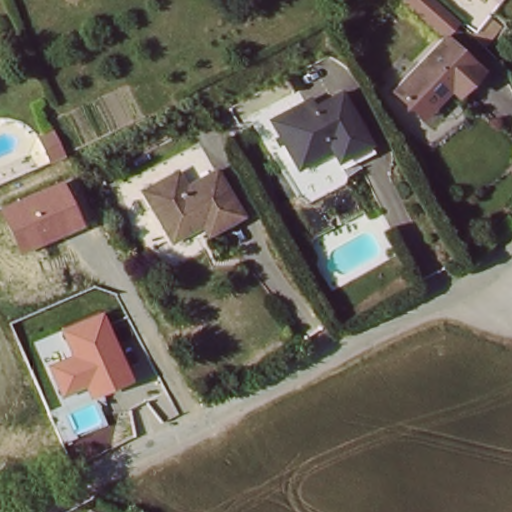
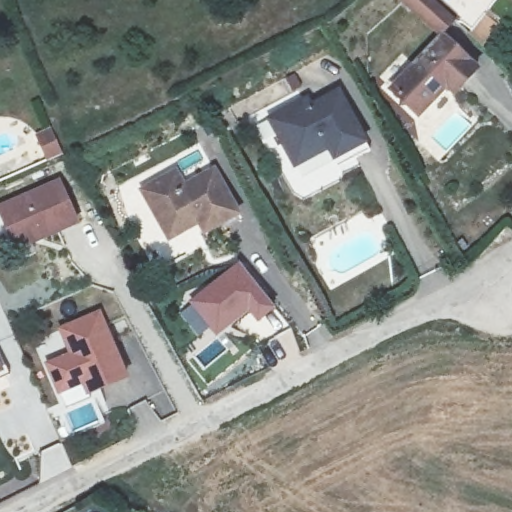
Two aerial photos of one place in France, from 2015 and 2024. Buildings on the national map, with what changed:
unchanged [(442,34),(485,71),(463,96),(452,86),(424,115),(392,89),(442,34)]
unchanged [(332,154),(325,142),(294,159),(292,154),(277,127),(269,112),(274,109),(302,94),(308,91),(312,99),(338,84),(365,136),(369,144),(336,162),(332,154)]
unchanged [(53,157),(42,131),(57,125),(69,151),(53,157)]
unchanged [(169,227),(145,182),(169,169),(179,164),(184,172),(213,155),(242,207),(207,226),(201,216),(171,231),(169,227)]
unchanged [(20,240),(4,206),(64,179),(82,219),(44,236),(22,246),(20,240)]
new [(189,303),(187,301),(239,260),(276,307),(256,323),(248,313),(215,338),(209,330),(198,338),(178,313),(189,303)]
unchanged [(94,380),(70,391),(57,364),(82,353),(70,328),(107,311),(135,374),(109,386),(99,391),(94,380)]
new [(11,373),(0,379),(0,351),(11,373)]

